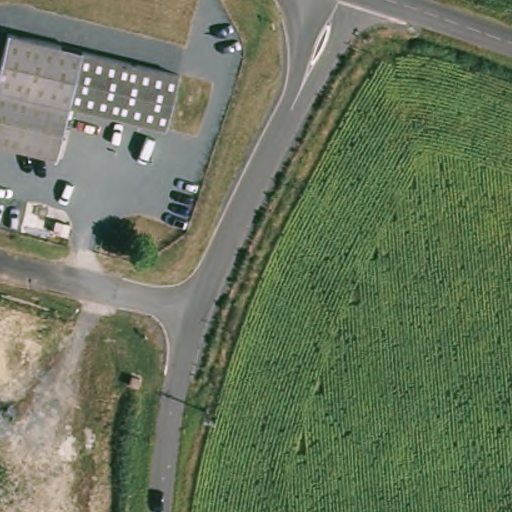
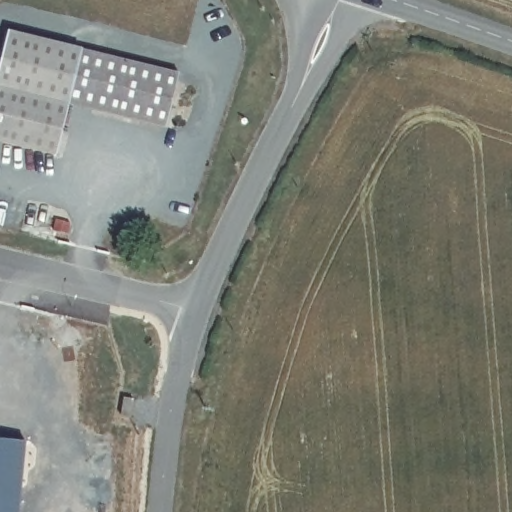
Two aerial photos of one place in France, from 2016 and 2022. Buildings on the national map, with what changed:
unchanged [(159,127),(62,104),(0,89),(0,39),(1,33),(172,74),(159,127)]
unchanged [(62,104),(50,156),(0,145),(0,89),(62,104)]
new [(26,443),(19,512),(0,512),(0,440),(26,443)]

